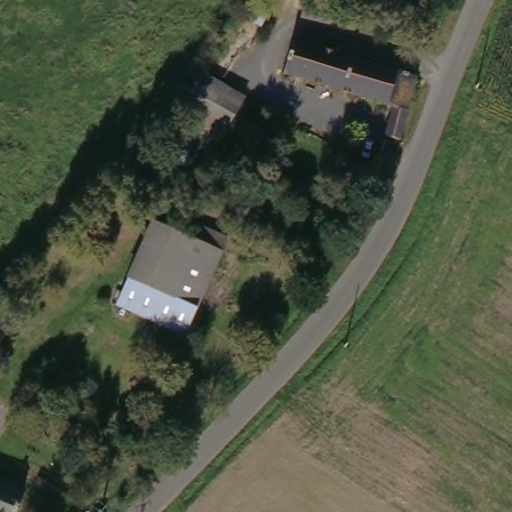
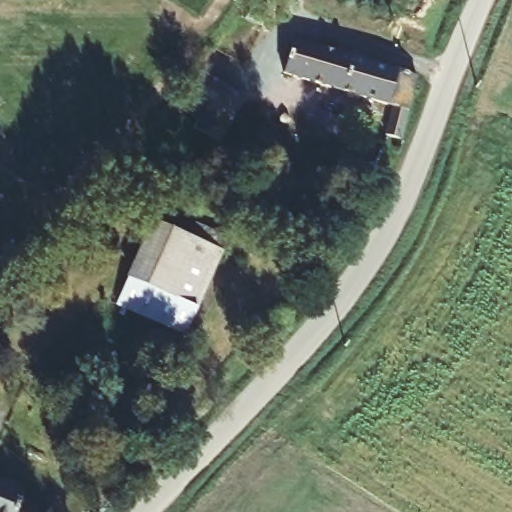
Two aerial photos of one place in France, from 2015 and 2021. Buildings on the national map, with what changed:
unchanged [(382,128),(392,100),(285,68),(295,34),(418,71),(398,134),(382,128)]
unchanged [(207,70),(250,93),(232,127),(189,103),(207,70)]
unchanged [(342,157),(374,169),(367,186),(334,174),(342,157)]
unchanged [(122,303),(158,222),(193,236),(198,224),(232,237),(187,332),(122,303)]
unchanged [(23,512),(0,512),(0,478),(32,489),(23,512)]

